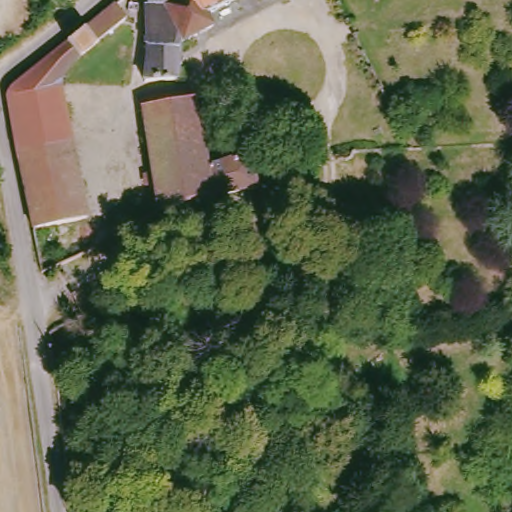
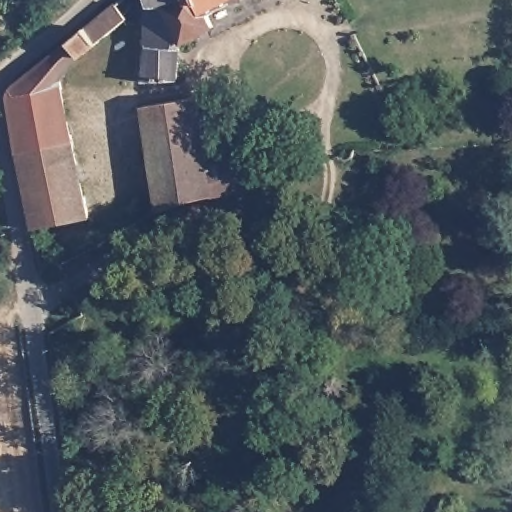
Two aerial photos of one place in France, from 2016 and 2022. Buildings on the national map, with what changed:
unchanged [(148,5),(155,3),(153,0),(243,0),(213,15),(220,28),(186,43),(184,80),(148,81),(151,37),(148,5)]
unchanged [(33,229),(17,150),(8,97),(9,92),(15,84),(115,3),(126,18),(70,62),(60,81),(90,217),(33,229)]
unchanged [(198,99),(208,164),(248,153),(261,185),(212,196),(155,213),(140,107),(198,99)]

